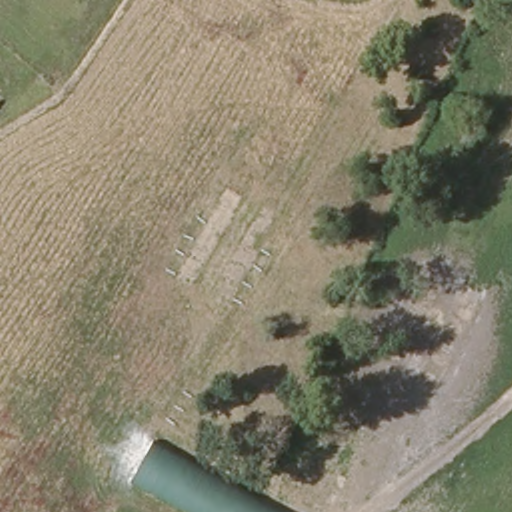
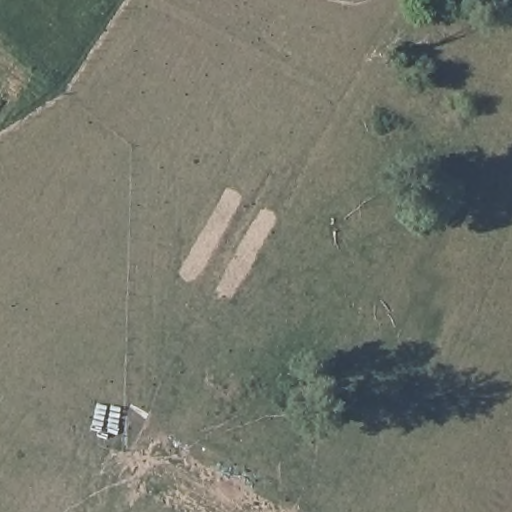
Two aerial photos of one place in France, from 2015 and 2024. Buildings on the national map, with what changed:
new [(133,481),(153,441),(287,512),(189,512),(133,481)]

